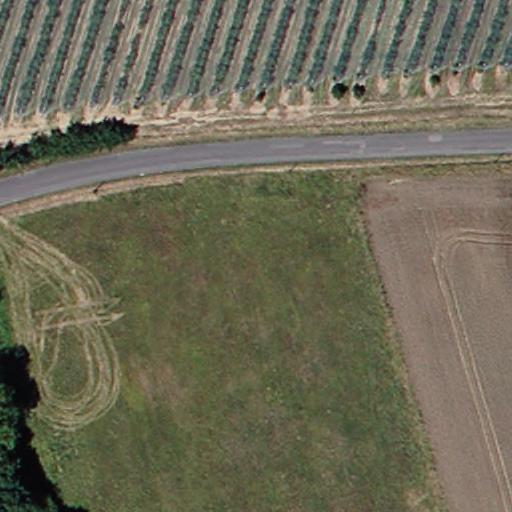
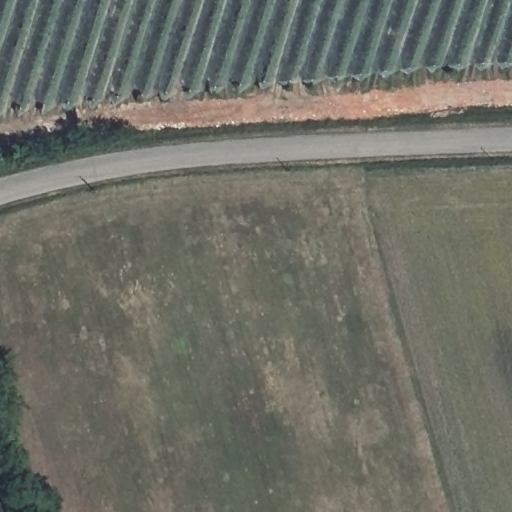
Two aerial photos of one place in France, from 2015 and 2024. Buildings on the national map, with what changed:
[]

